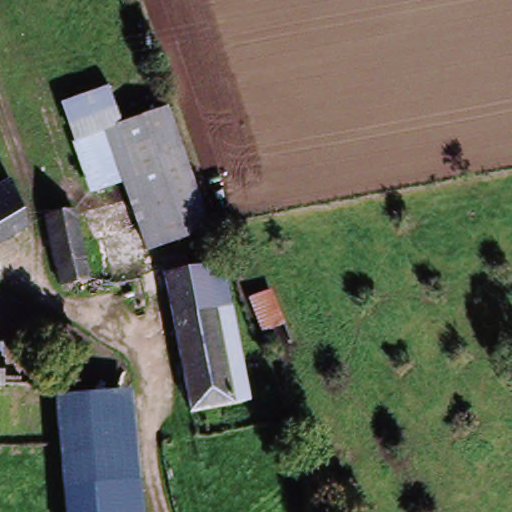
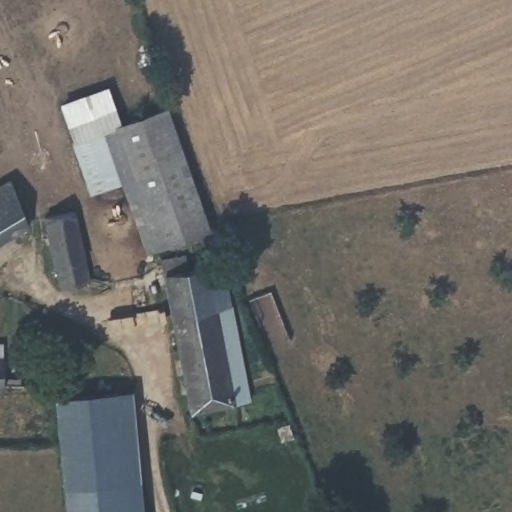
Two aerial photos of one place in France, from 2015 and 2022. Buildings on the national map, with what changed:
unchanged [(133,191),(91,199),(80,153),(84,151),(73,113),(168,89),(206,243),(159,256),(150,258),(140,218),(133,191)]
unchanged [(13,188),(25,209),(26,210),(33,223),(0,241),(0,196),(13,188)]
unchanged [(89,289),(64,293),(60,272),(53,229),(78,225),(79,230),(89,289)]
unchanged [(247,408),(201,417),(175,287),(170,272),(198,265),(203,281),(223,277),(247,408)]
unchanged [(249,303),(278,290),(297,341),(272,350),(249,303)]
unchanged [(8,346),(9,397),(0,398),(0,347),(8,346)]
unchanged [(142,492),(66,500),(57,410),(101,405),(133,402),(137,450),(142,492)]
unchanged [(143,497),(144,512),(66,512),(66,501),(143,497)]

